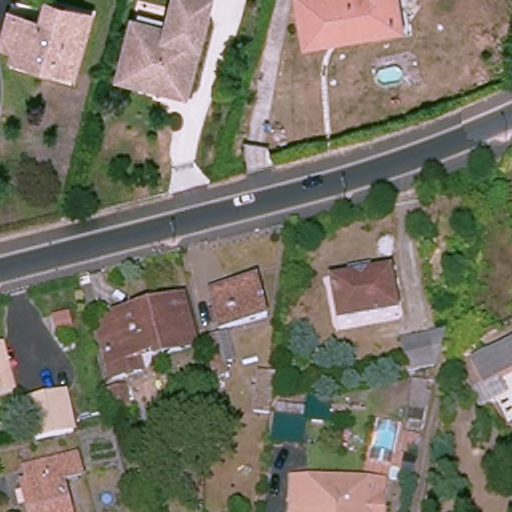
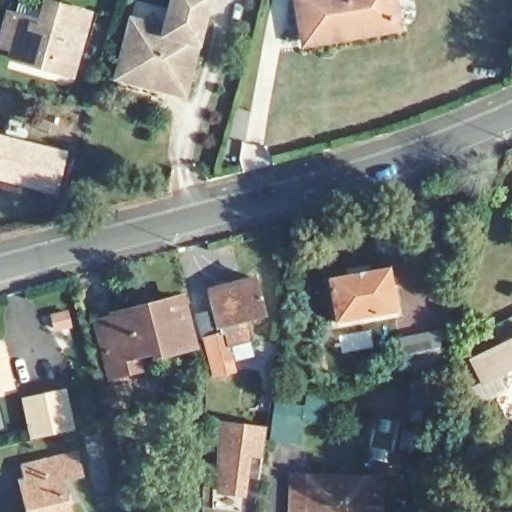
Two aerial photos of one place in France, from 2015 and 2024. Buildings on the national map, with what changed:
unchanged [(161,81),(162,74),(123,66),(134,20),(163,25),(169,0),(202,0),(182,85),(161,81)]
unchanged [(347,30),(348,35),(307,42),(299,0),(388,0),(392,23),(347,30)]
unchanged [(16,54),(3,52),(11,20),(63,33),(67,17),(93,25),(78,79),(27,67),(14,64),(16,54)]
new [(69,150),(57,193),(0,181),(0,134),(69,150)]
unchanged [(337,323),(331,279),(347,277),(346,267),(369,265),(371,274),(393,271),(399,313),(337,323)]
unchanged [(213,298),(263,285),(272,318),(221,333),(213,298)]
unchanged [(156,358),(155,353),(139,358),(143,376),(114,384),(102,330),(114,326),(113,323),(183,303),(194,345),(156,358)]
unchanged [(406,368),(402,338),(450,331),(443,361),(406,368)]
unchanged [(478,361),(512,341),(512,373),(491,385),(478,361)]
unchanged [(4,343),(15,387),(0,391),(0,344),(4,343)]
unchanged [(217,383),(210,348),(223,345),(231,379),(217,383)]
unchanged [(271,418),(252,413),(258,368),(279,371),(274,402),(313,404),(307,448),(270,441),(271,418)]
unchanged [(421,409),(406,406),(412,376),(428,379),(421,409)]
unchanged [(114,410),(109,389),(124,385),(129,406),(114,410)]
unchanged [(32,438),(25,402),(64,393),(71,428),(32,438)]
new [(0,430),(0,409),(5,429),(0,430)]
new [(241,483),(239,499),(215,498),(217,430),(263,431),(259,460),(255,485),(241,483)]
unchanged [(27,479),(35,477),(32,463),(62,455),(80,451),(83,468),(66,471),(76,512),(34,512),(27,479)]
unchanged [(284,476),(392,478),(392,512),(283,512),(284,476)]

